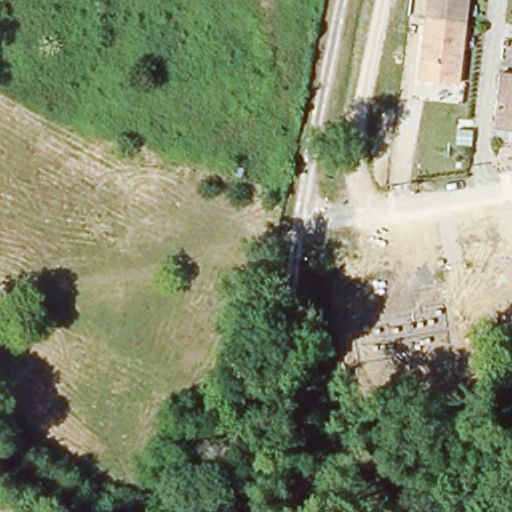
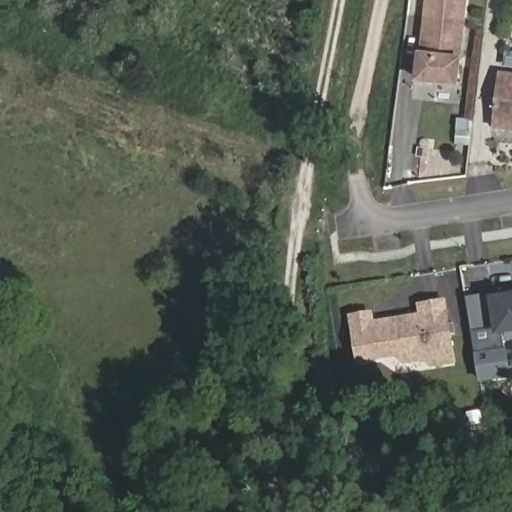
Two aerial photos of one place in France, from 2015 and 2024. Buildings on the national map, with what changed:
unchanged [(429,0),(468,0),(463,41),(457,94),(419,89),(425,35),(429,0)]
unchanged [(492,129),(498,75),(512,77),(512,131),(492,129)]
unchanged [(455,154),(457,139),(471,140),(470,150),(469,155),(455,154)]
new [(510,291),(511,297),(512,297),(512,330),(499,332),(499,329),(473,333),(467,297),(494,293),(510,291)]
new [(451,348),(360,362),(353,317),(376,314),(377,320),(423,313),(422,307),(445,303),(451,348)]

